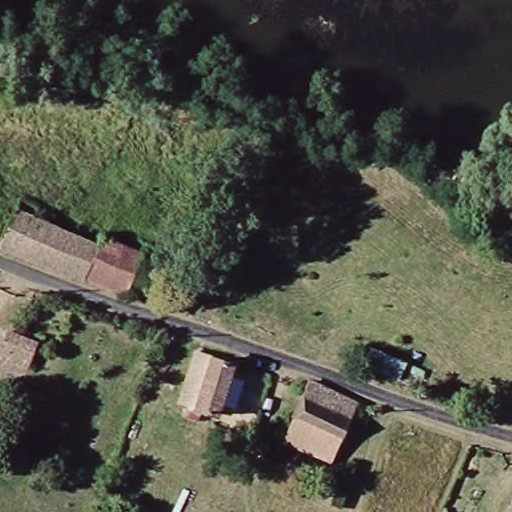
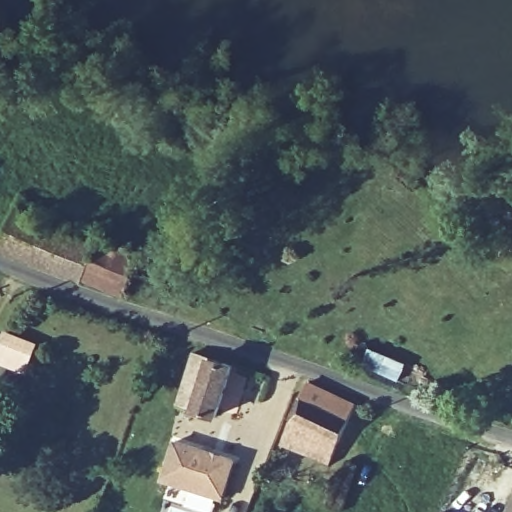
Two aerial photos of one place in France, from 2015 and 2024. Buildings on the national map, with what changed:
unchanged [(102,236),(140,253),(119,297),(82,277),(80,282),(0,250),(0,239),(9,207),(96,245),(102,236)]
unchanged [(0,376),(0,374),(0,346),(4,335),(37,348),(15,404),(0,398),(0,376)]
unchanged [(198,354),(231,364),(216,415),(184,406),(198,354)]
unchanged [(272,455),(303,386),(350,406),(319,476),(272,455)]
new [(161,480),(175,438),(238,458),(225,500),(161,480)]
unchanged [(504,512),(512,495),(512,512),(504,512)]

